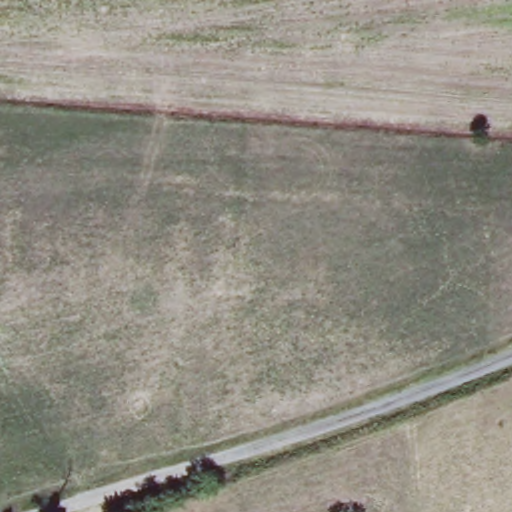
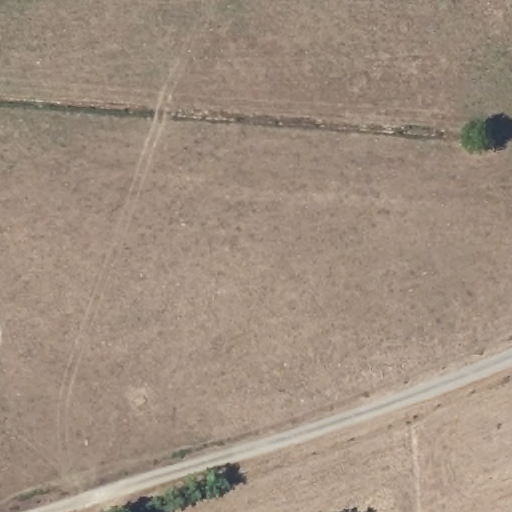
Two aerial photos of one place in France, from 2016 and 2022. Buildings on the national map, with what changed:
[]

